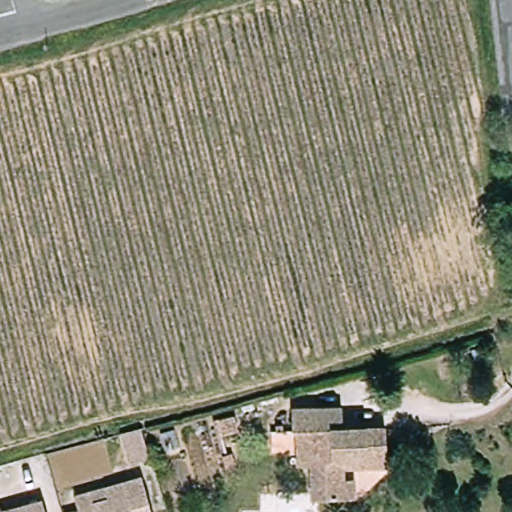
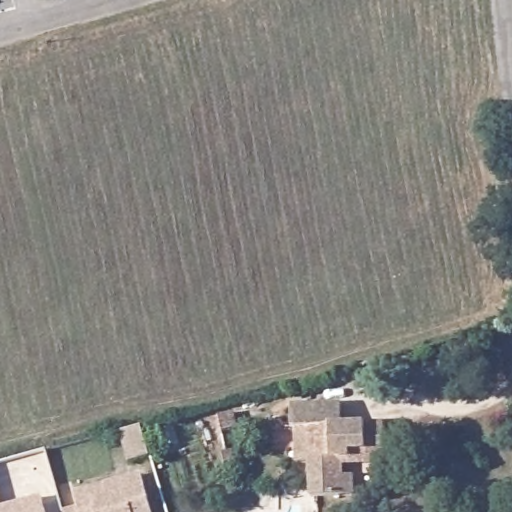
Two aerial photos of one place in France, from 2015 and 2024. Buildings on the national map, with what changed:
unchanged [(342,496),(324,496),(308,497),(307,463),(293,463),(291,428),(288,428),(287,407),(298,407),(339,406),(340,425),(383,425),(384,464),(341,466),(341,477),(352,477),(352,496),(342,496)]
unchanged [(63,510),(77,506),(73,492),(90,487),(104,483),(142,472),(152,512),(64,512),(63,510)]
unchanged [(5,507),(42,497),(47,512),(0,512),(0,491),(5,507)]

